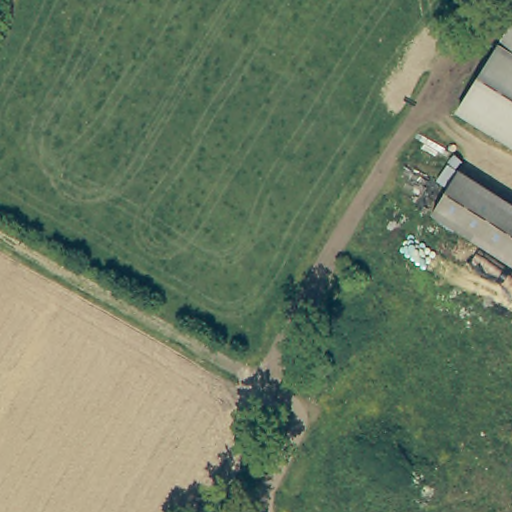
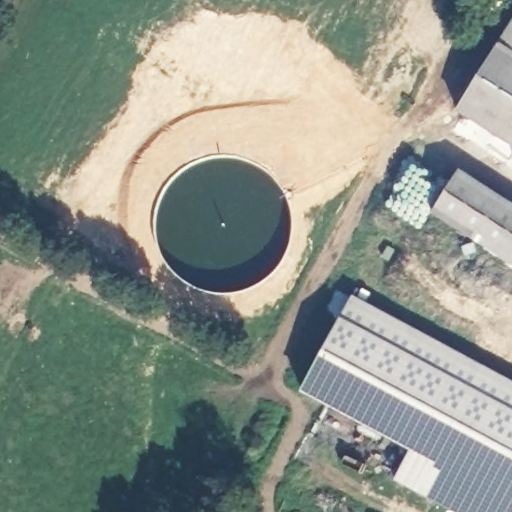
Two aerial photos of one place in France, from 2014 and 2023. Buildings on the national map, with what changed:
unchanged [(512,25),(512,147),(458,114),(512,25)]
unchanged [(512,207),(512,266),(424,210),(450,168),(512,207)]
new [(512,512),(452,512),(396,482),(412,453),(302,394),(354,297),(512,381),(512,512)]

